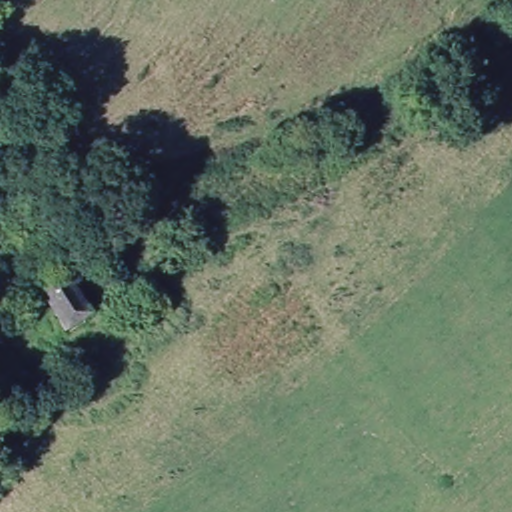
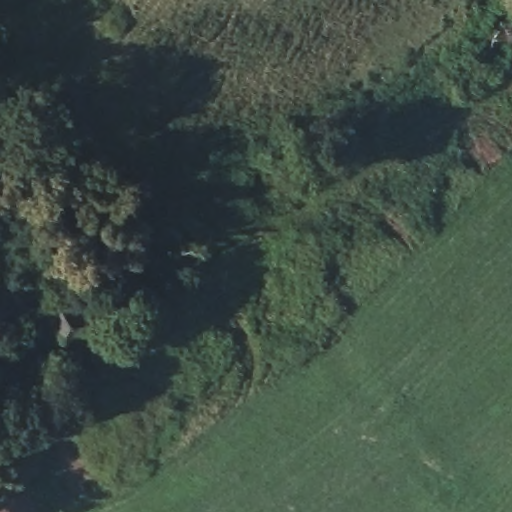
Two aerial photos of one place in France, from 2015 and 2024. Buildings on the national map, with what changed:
unchanged [(39,293),(62,275),(88,315),(64,331),(39,293)]

